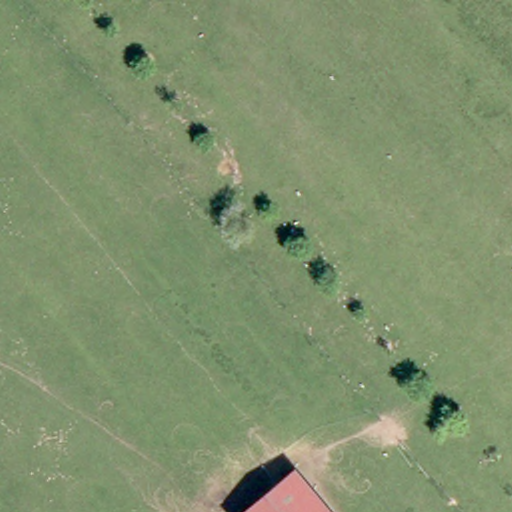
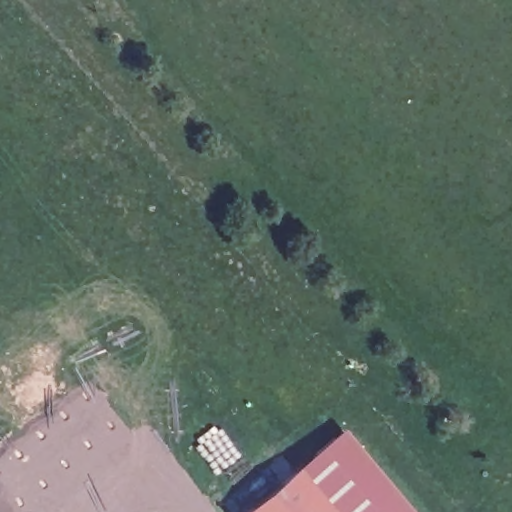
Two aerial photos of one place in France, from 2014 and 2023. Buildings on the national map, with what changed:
new [(342,427),(413,512),(334,512),(297,467),(342,427)]
unchanged [(297,467),(334,512),(245,512),(297,467)]

